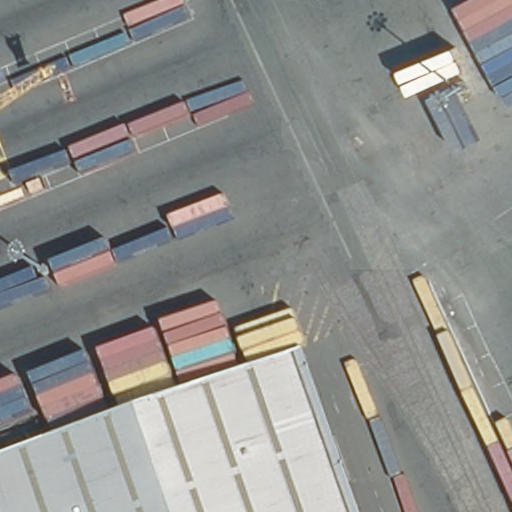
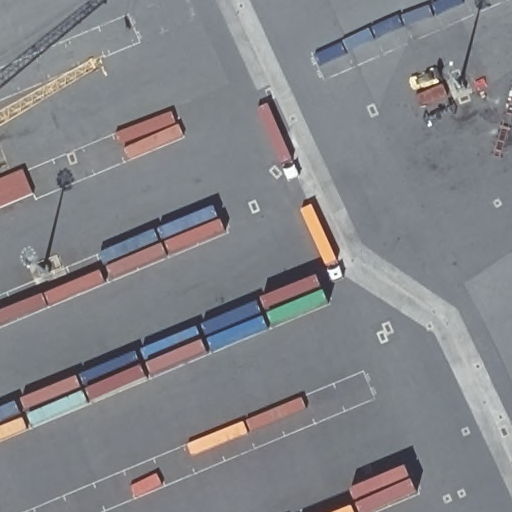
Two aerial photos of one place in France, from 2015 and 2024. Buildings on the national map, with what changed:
demolished [(320,512),(0,512),(0,449),(269,361),(320,512)]

